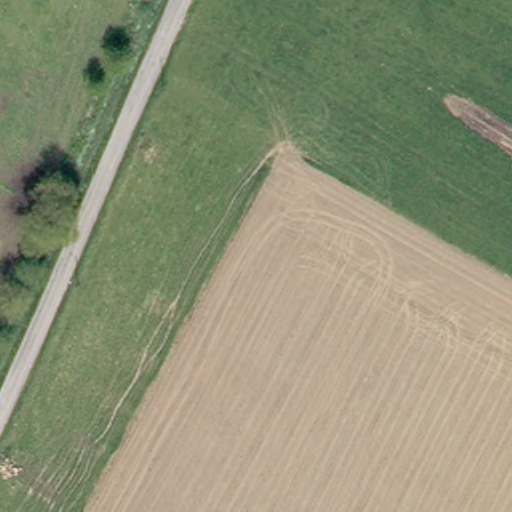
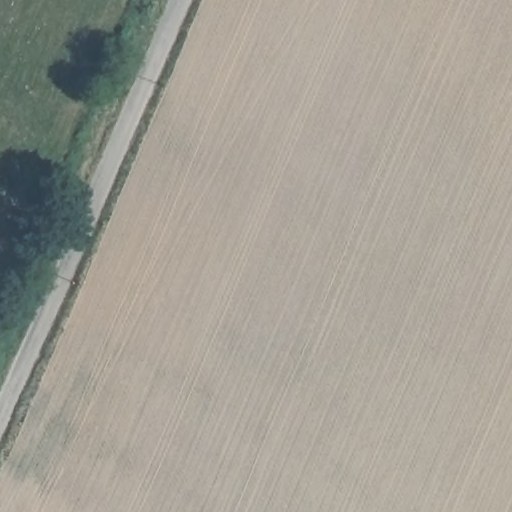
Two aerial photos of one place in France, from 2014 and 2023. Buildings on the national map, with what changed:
[]

